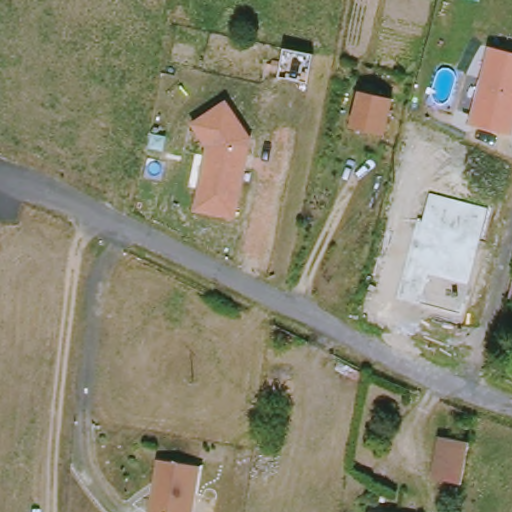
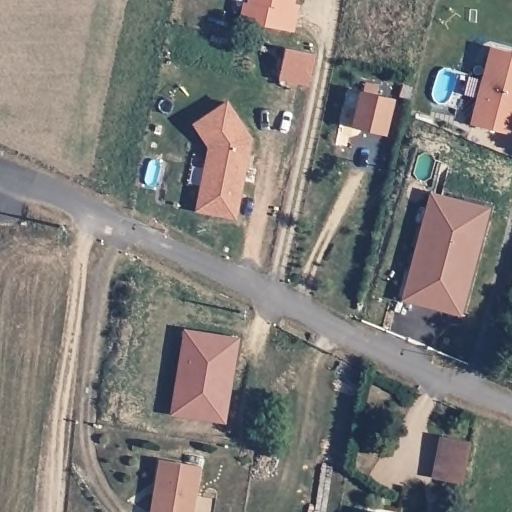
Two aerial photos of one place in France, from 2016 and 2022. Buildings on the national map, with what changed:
new [(294,30),(241,19),(243,1),(247,2),(248,0),(295,0),(295,2),(300,4),(294,30)]
new [(317,53),(312,82),(282,76),(287,47),(317,53)]
new [(512,53),(512,136),(473,126),(493,48),(512,53)]
unchanged [(394,98),(386,135),(355,128),(363,92),(394,98)]
unchanged [(234,217),(195,208),(205,145),(190,121),(225,98),(252,136),(234,217)]
new [(462,316),(399,300),(420,222),(424,223),(432,194),(490,210),(462,316)]
new [(171,415),(184,328),(239,337),(227,423),(171,415)]
unchanged [(461,484),(435,479),(442,439),(468,443),(461,484)]
unchanged [(156,457),(199,463),(191,512),(148,512),(156,457)]

